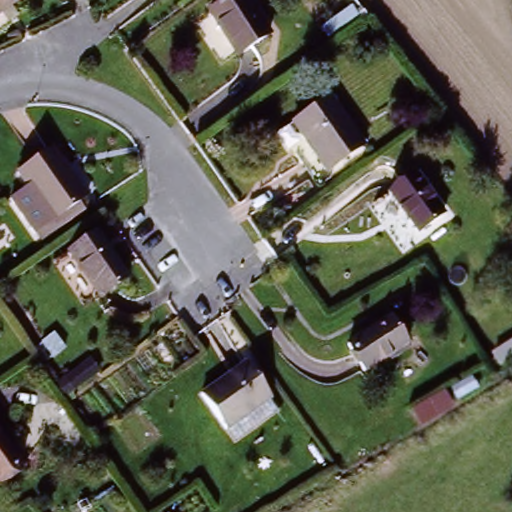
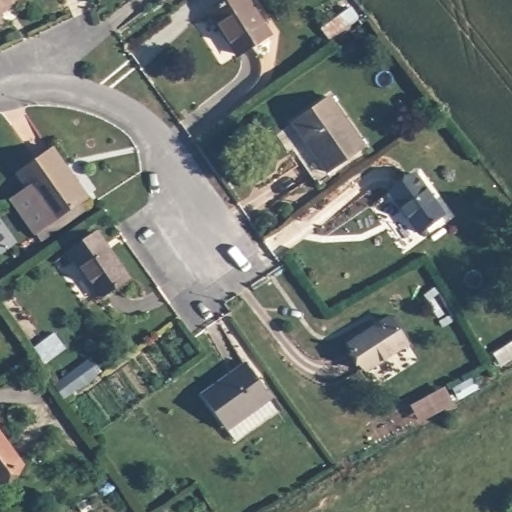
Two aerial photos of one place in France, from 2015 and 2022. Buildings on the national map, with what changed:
unchanged [(0,4),(0,0),(5,0),(0,4)]
unchanged [(208,7),(220,0),(248,0),(269,31),(237,51),(208,7)]
unchanged [(331,37),(323,28),(350,7),(358,17),(331,37)]
unchanged [(289,120),(324,95),(359,143),(323,169),(289,120)]
unchanged [(51,223),(16,170),(54,144),(87,196),(51,223)]
unchanged [(391,190),(414,172),(443,211),(419,229),(391,190)]
unchanged [(70,249),(94,232),(125,276),(101,293),(70,249)]
unchanged [(366,366),(350,340),(391,314),(408,340),(366,366)]
unchanged [(99,370),(73,388),(63,373),(89,355),(99,370)]
unchanged [(234,438),(226,426),(201,391),(243,361),(246,360),(271,395),(269,396),(278,407),(234,438)]
unchanged [(20,462),(0,477),(0,434),(20,462)]

